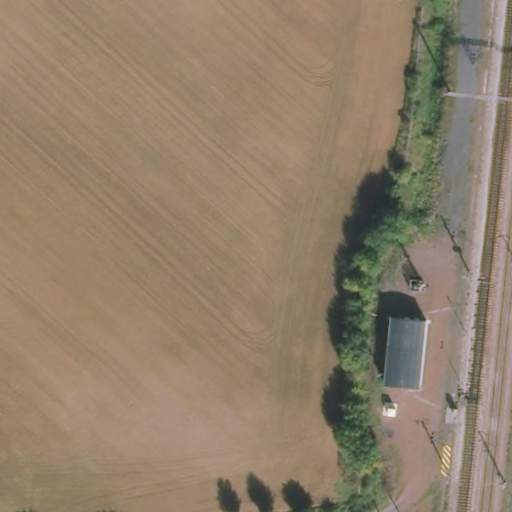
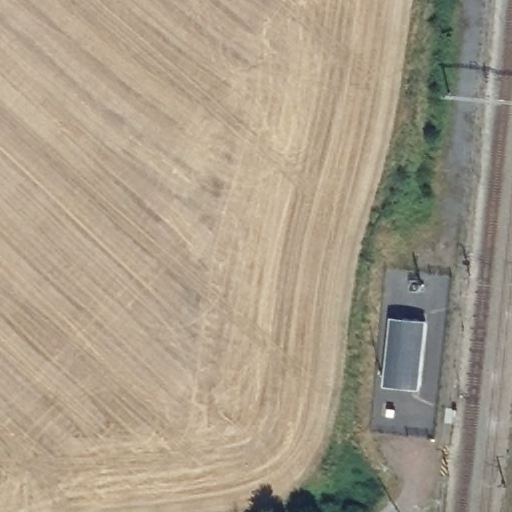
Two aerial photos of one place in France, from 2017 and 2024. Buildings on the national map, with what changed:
unchanged [(389,318),(429,320),(422,390),(387,390),(389,318)]

